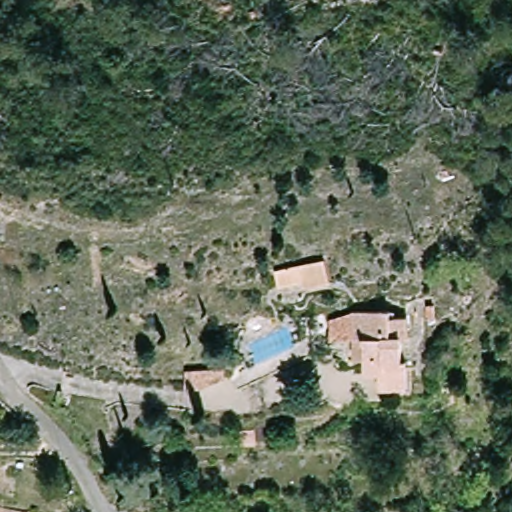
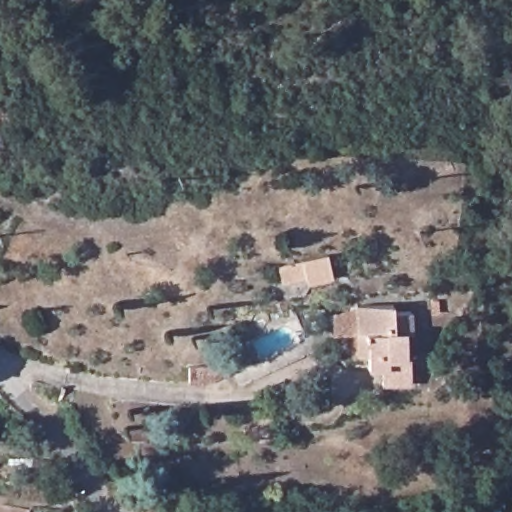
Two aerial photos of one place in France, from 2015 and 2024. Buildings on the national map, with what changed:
unchanged [(312,287),(310,281),(284,286),(279,267),(330,256),(335,282),(312,287)]
unchanged [(352,342),(352,338),(336,338),(336,316),(352,312),(388,313),(388,317),(410,317),(410,339),(402,339),(402,357),(407,357),(408,388),(380,388),(379,375),(365,375),(365,362),(353,362),(352,342)]
unchanged [(191,366),(231,367),(231,380),(191,385),(191,366)]
unchanged [(28,512),(0,512),(0,507),(28,512)]

